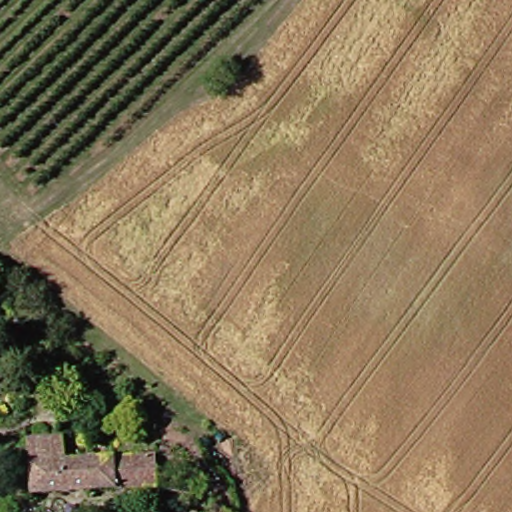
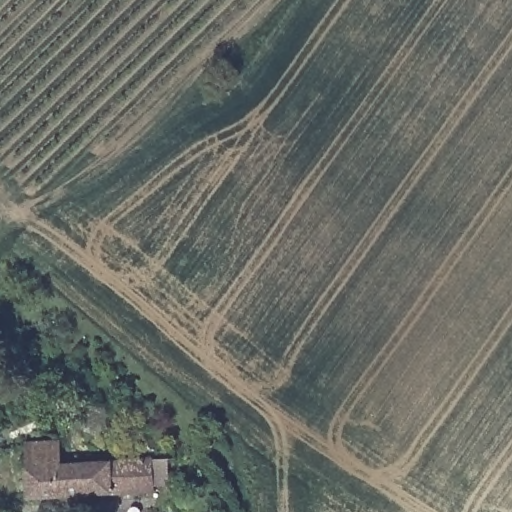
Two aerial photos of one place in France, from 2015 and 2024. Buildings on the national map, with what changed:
unchanged [(163,486),(38,506),(33,472),(30,451),(63,446),(66,468),(159,456),(163,486)]

